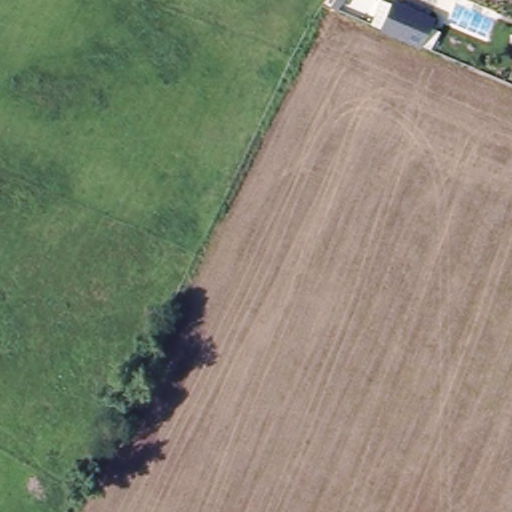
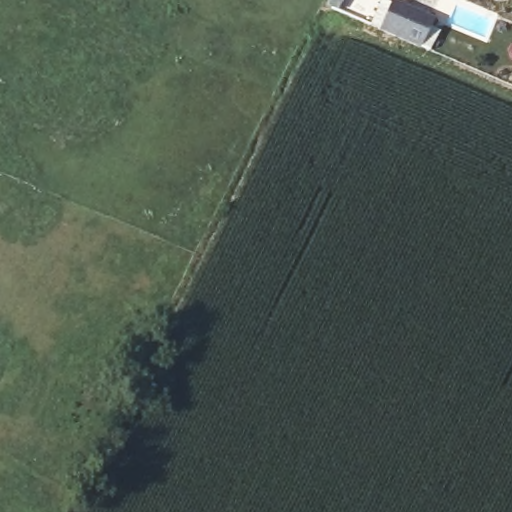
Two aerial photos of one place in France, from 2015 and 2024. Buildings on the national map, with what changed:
unchanged [(328,9),(332,0),(346,0),(338,14),(328,9)]
unchanged [(382,0),(388,3),(391,0),(430,16),(427,23),(443,31),(436,49),(370,20),(381,0),(382,0)]

